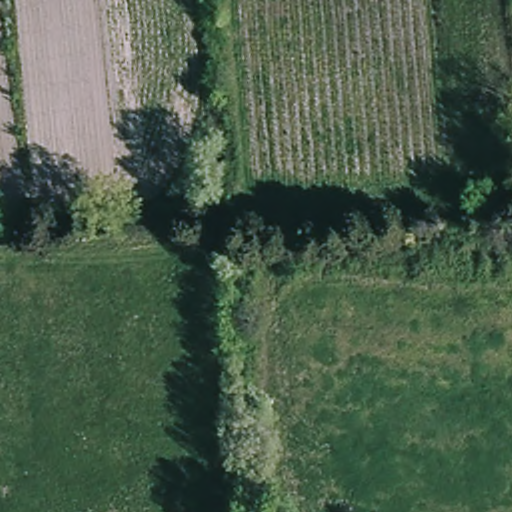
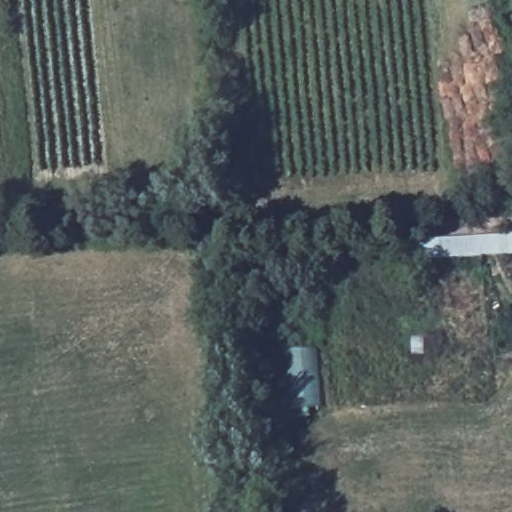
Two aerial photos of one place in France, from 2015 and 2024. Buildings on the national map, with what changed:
new [(512,236),(512,255),(422,261),(421,242),(512,236)]

